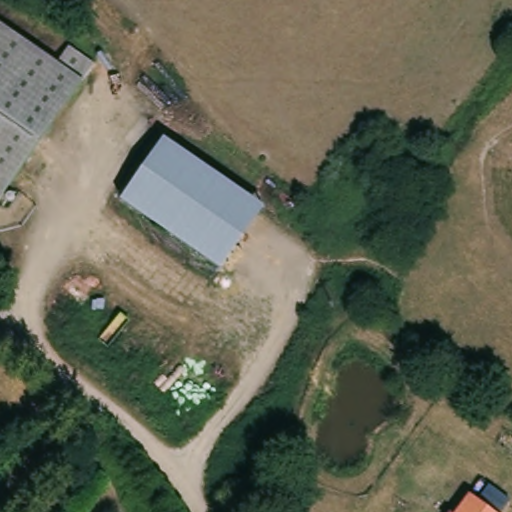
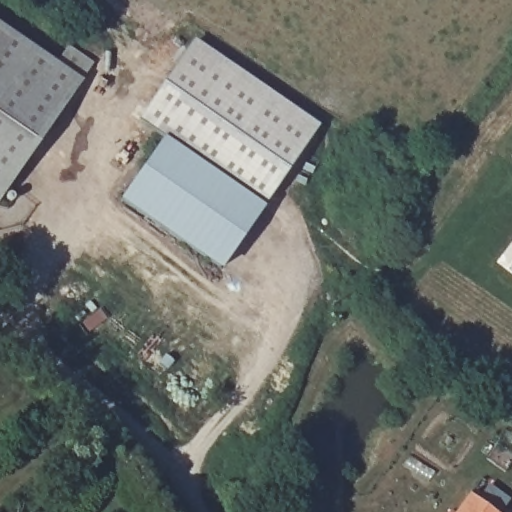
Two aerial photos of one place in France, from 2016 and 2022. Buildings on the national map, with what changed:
unchanged [(82,81),(0,200),(0,24),(82,81)]
new [(164,140),(138,122),(195,38),(321,125),(263,207),(164,140)]
unchanged [(164,140),(263,207),(222,268),(122,200),(164,140)]
unchanged [(492,512),(459,512),(471,496),(492,512)]

